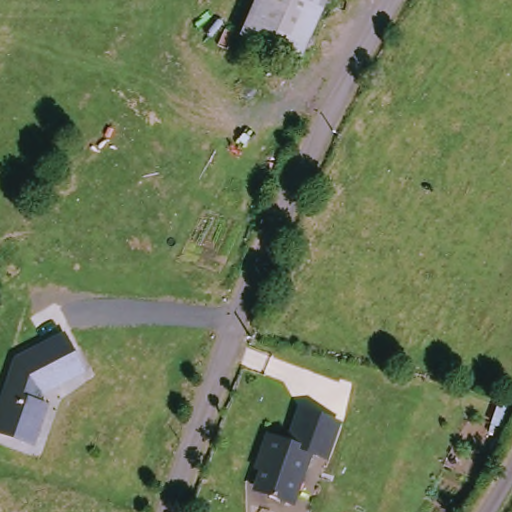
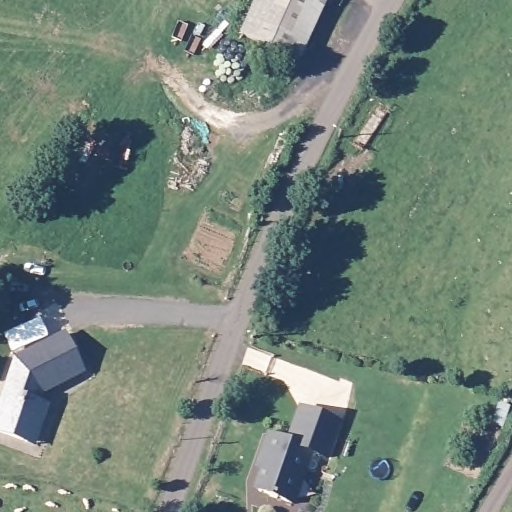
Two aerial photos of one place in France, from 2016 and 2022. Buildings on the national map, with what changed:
unchanged [(255,0),(321,0),(293,61),(239,37),(255,0)]
unchanged [(25,442),(0,432),(0,402),(16,358),(66,335),(84,373),(41,393),(38,401),(47,404),(38,426),(31,444),(25,442)]
unchanged [(262,454),(271,434),(290,442),(303,407),(341,422),(330,457),(313,451),(294,502),(261,490),(258,484),(263,469),(258,467),(262,454)]

